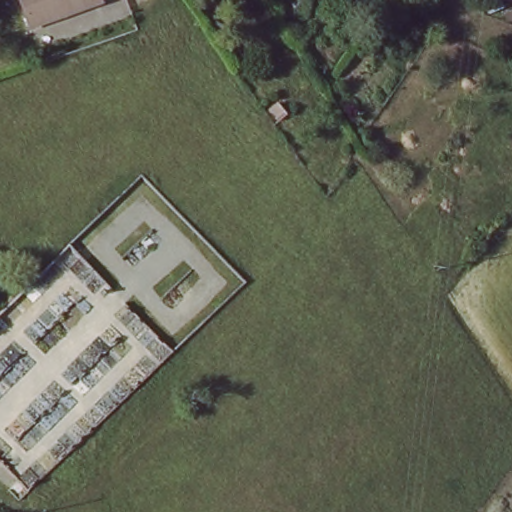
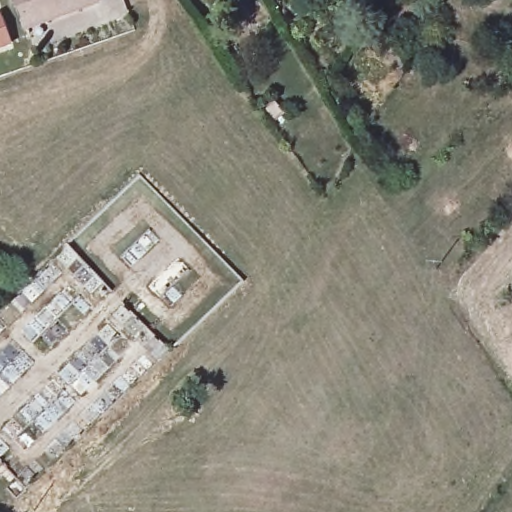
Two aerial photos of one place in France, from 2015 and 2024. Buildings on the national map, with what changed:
unchanged [(31,26),(21,0),(96,0),(98,3),(31,26)]
new [(1,12),(13,44),(0,49),(0,13),(1,12)]

